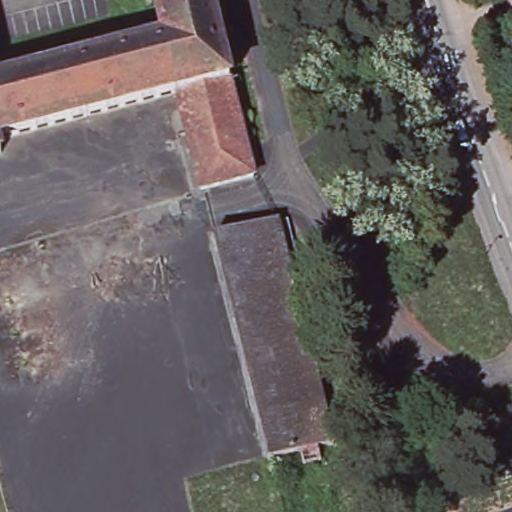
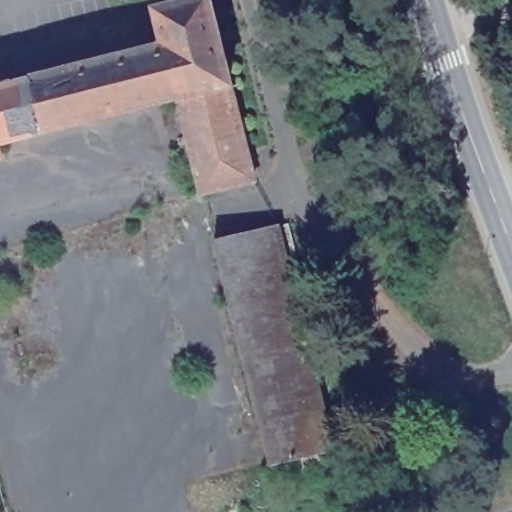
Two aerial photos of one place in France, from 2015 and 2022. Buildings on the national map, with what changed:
unchanged [(165,42),(156,6),(181,0),(211,0),(255,177),(201,191),(178,95),(0,142),(0,85),(165,42)]
unchanged [(2,156),(0,156),(0,149),(2,156)]
unchanged [(302,471),(299,460),(285,463),(230,239),(277,227),(286,225),(308,315),(299,316),(332,451),(318,455),(320,467),(302,471)]
unchanged [(269,467),(212,243),(230,239),(285,463),(269,467)]

